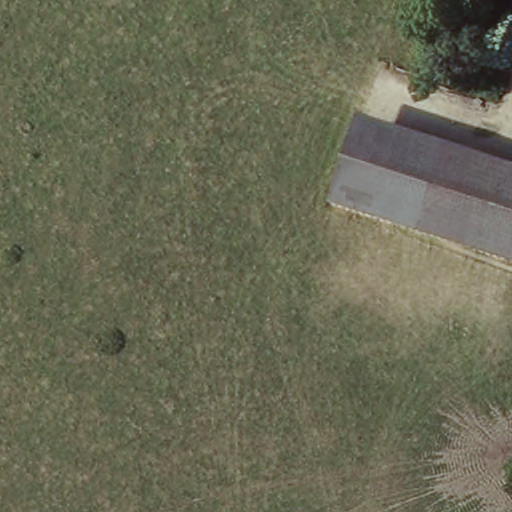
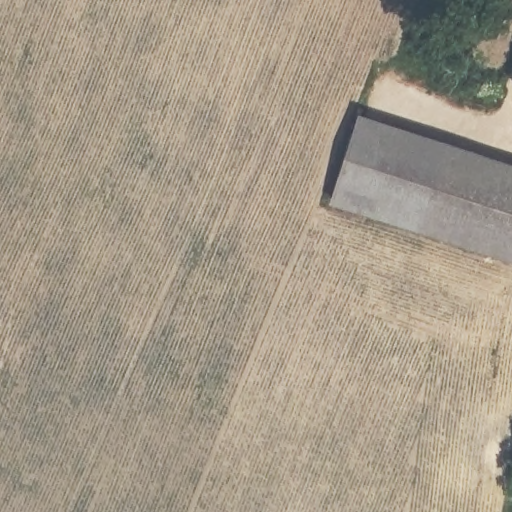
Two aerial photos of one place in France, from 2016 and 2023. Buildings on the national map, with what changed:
unchanged [(512,167),(512,268),(326,207),(357,115),(512,167)]

